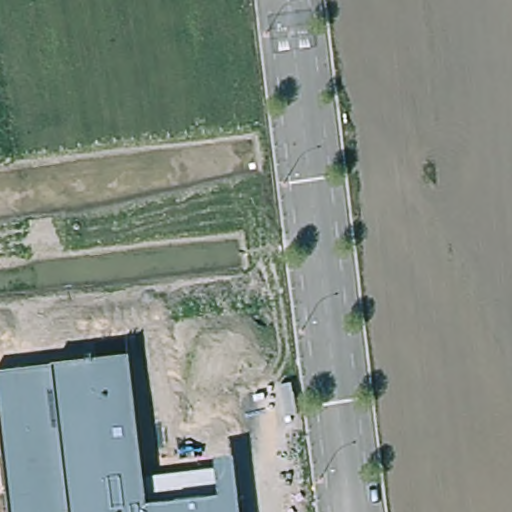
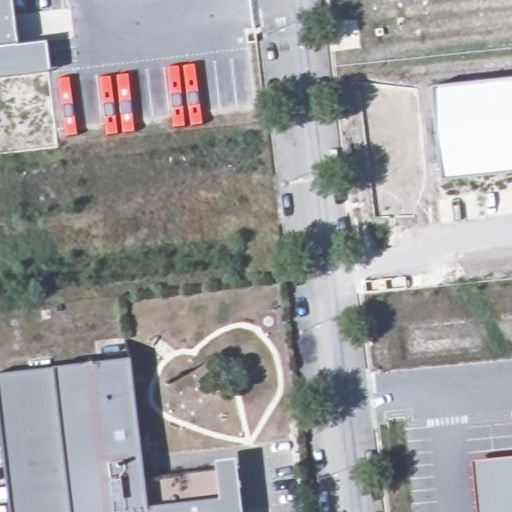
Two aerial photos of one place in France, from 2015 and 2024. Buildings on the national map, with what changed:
new [(50,72),(0,78),(0,0),(11,0),(16,46),(46,42),(50,72)]
new [(440,180),(430,89),(512,79),(512,173),(440,180)]
unchanged [(130,359),(143,474),(212,465),(231,462),(237,512),(10,512),(0,422),(0,377),(54,368),(130,359)]
new [(475,512),(470,463),(512,459),(512,512),(475,512)]

